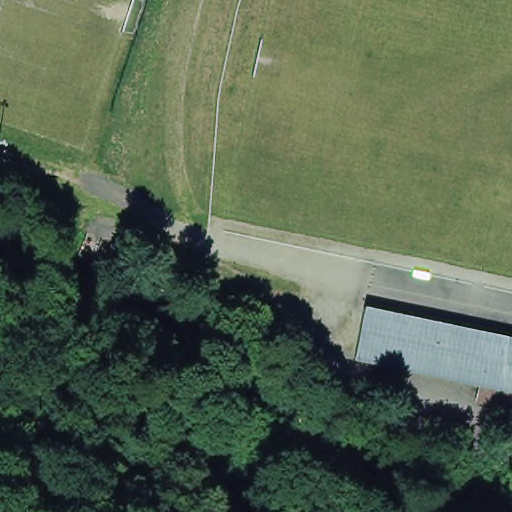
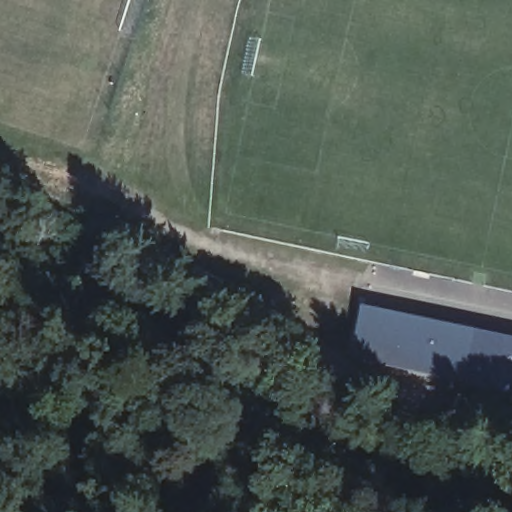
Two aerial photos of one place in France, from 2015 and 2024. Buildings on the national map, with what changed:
unchanged [(173,257),(168,269),(157,265),(160,253),(173,257)]
unchanged [(512,356),(512,390),(352,354),(362,306),(407,316),(405,333),(512,356)]
unchanged [(512,356),(405,333),(407,316),(512,340),(512,356)]

